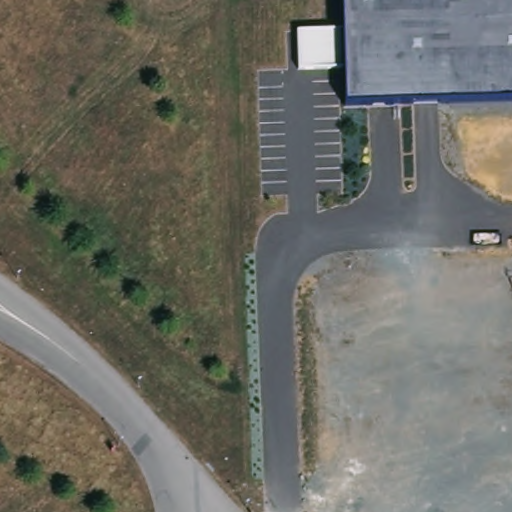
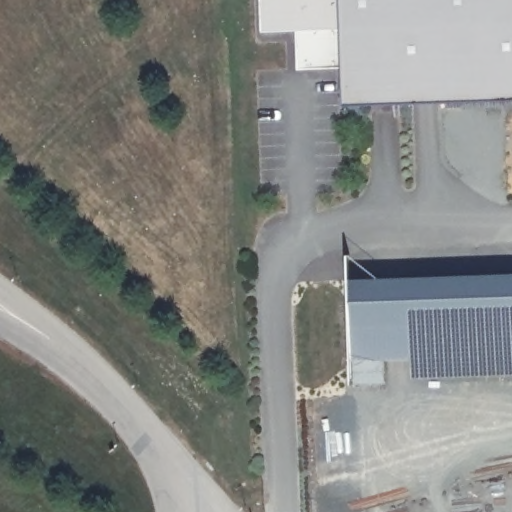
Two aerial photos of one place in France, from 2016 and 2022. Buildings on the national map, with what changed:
new [(259,0),(342,0),(342,27),(297,31),(261,31),(259,0)]
unchanged [(341,0),(512,0),(512,99),(345,103),(344,67),(298,70),(297,31),(342,27),(341,0)]
new [(512,280),(512,360),(416,364),(356,365),(352,285),(512,280)]
new [(512,360),(512,380),(417,383),(416,364),(512,360)]

